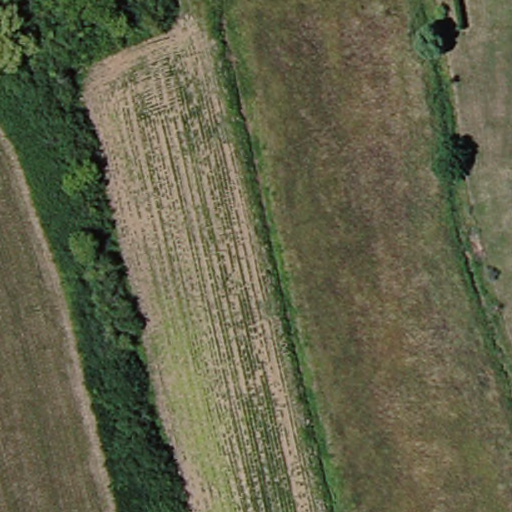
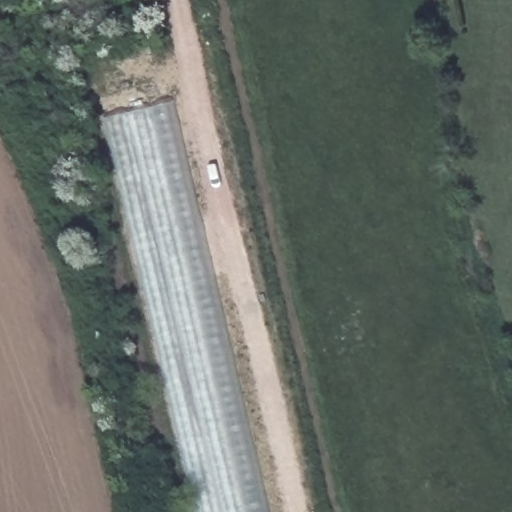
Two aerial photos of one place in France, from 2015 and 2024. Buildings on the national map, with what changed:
new [(176,102),(272,512),(197,512),(105,119),(176,102)]

